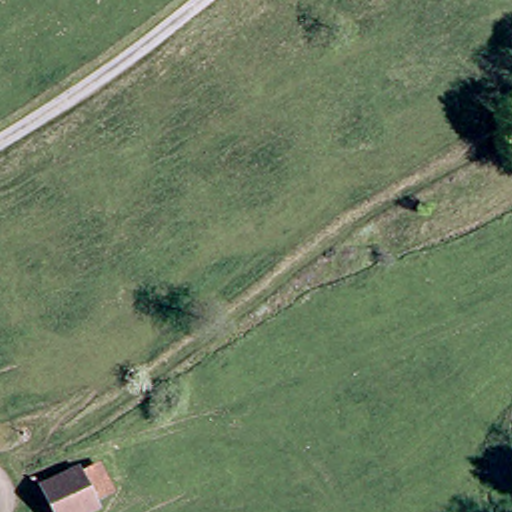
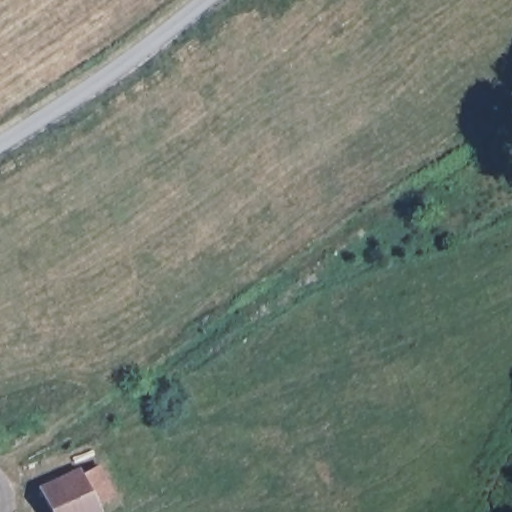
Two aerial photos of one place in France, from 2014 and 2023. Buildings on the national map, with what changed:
unchanged [(105,477),(97,482),(109,512),(58,512),(47,488),(100,467),(105,477)]

